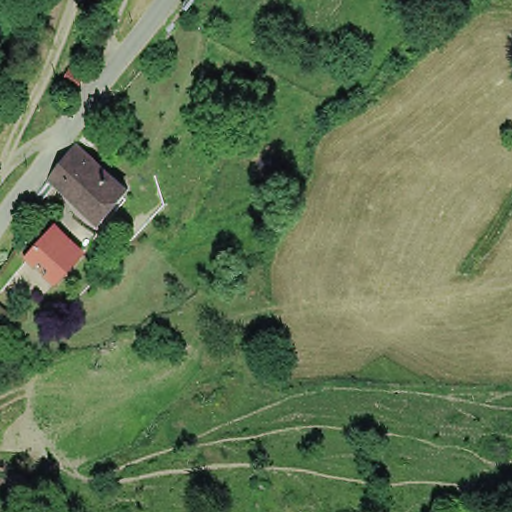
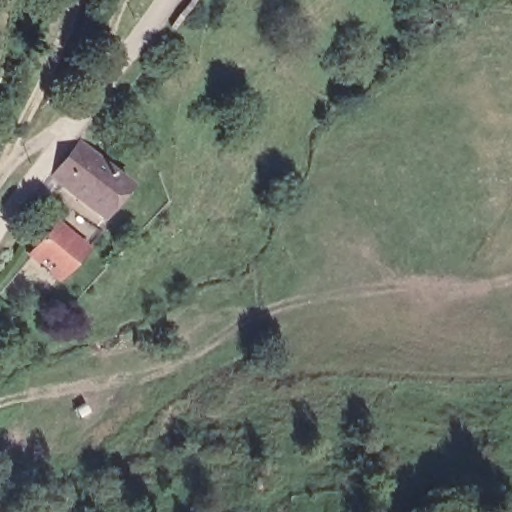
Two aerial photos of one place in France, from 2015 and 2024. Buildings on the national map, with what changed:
unchanged [(78,87),(65,81),(75,64),(87,70),(78,87)]
unchanged [(51,173),(78,139),(133,182),(106,216),(51,173)]
unchanged [(61,282),(30,254),(55,226),(85,254),(61,282)]

